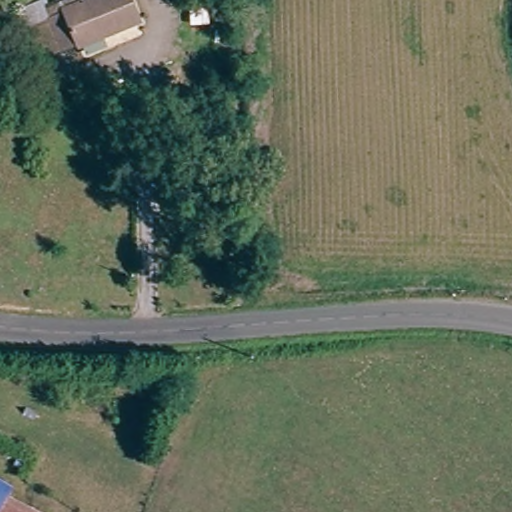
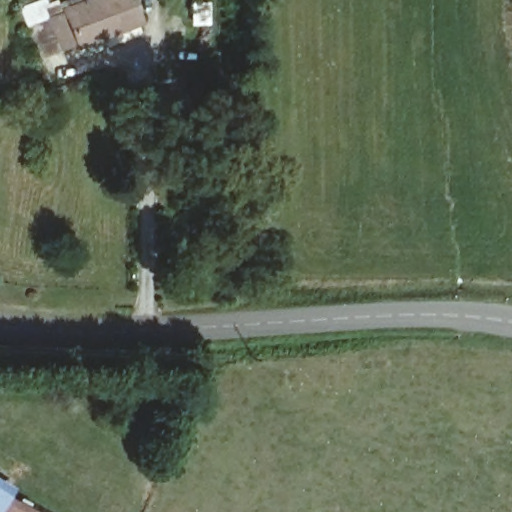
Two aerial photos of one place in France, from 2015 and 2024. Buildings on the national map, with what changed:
unchanged [(63,11),(89,0),(127,0),(136,20),(78,45),(76,40),(63,46),(52,20),(65,15),(63,11)]
unchanged [(19,486),(14,496),(47,512),(0,512),(0,475),(19,486)]

